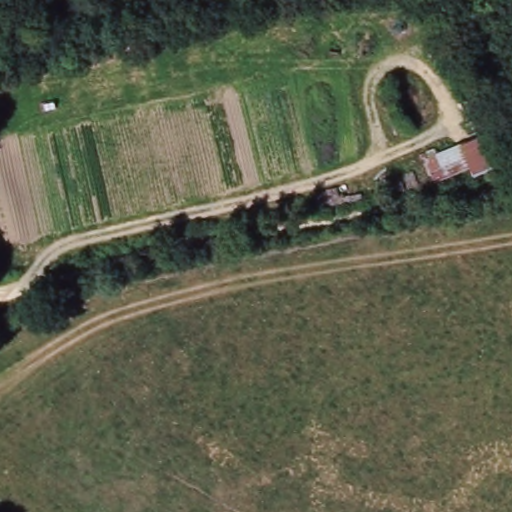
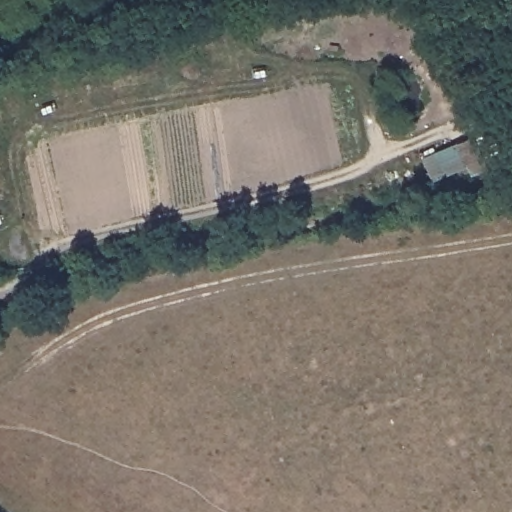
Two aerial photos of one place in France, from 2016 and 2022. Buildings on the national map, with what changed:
unchanged [(425,155),(461,142),(488,132),(501,164),(474,175),(470,167),(434,181),(425,155)]

